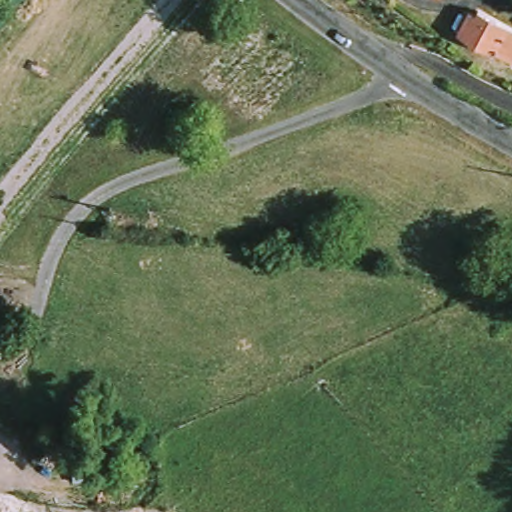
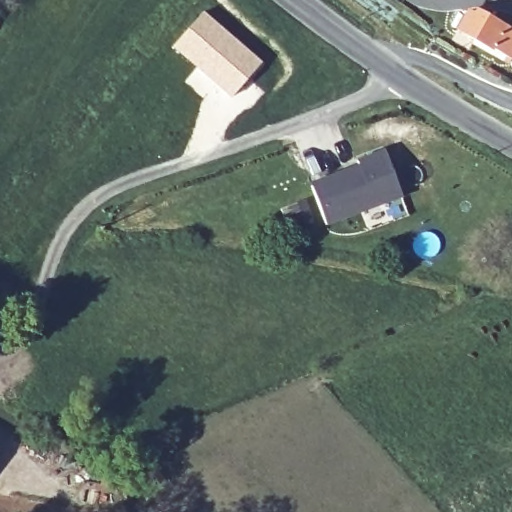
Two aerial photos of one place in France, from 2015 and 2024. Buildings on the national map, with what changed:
new [(204,10),(263,62),(230,99),(172,45),(204,10)]
unchanged [(471,35),(480,16),(512,33),(512,56),(471,35)]
new [(310,183),(359,163),(358,158),(385,149),(403,198),(325,227),(310,183)]

